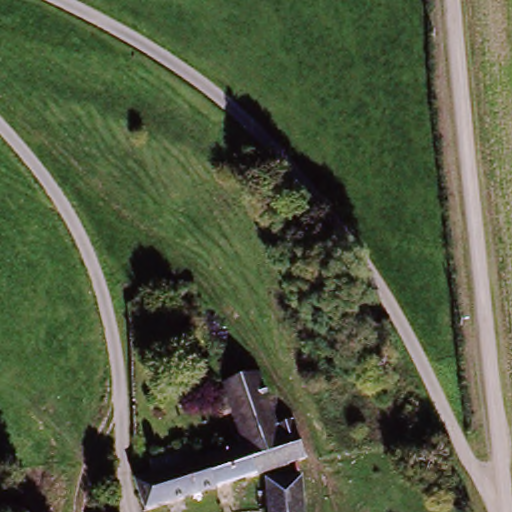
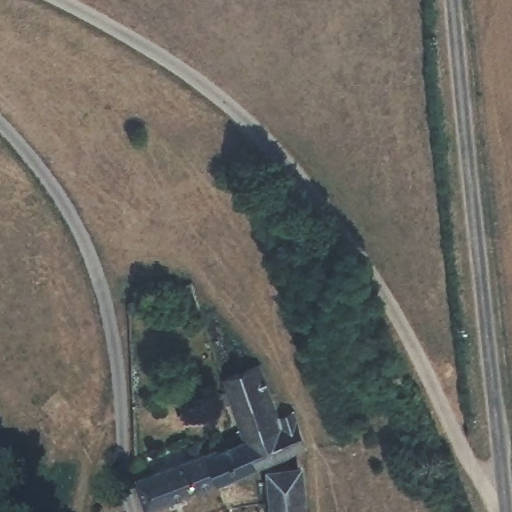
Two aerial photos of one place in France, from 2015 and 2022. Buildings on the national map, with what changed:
unchanged [(307,445),(277,463),(263,434),(255,416),(238,382),(270,367),(295,415),(310,408),(324,438),(307,445)]
unchanged [(145,496),(262,435),(263,434),(277,463),(202,504),(186,512),(155,512),(145,496)]
unchanged [(312,512),(291,512),(289,474),(310,473),(312,512)]

